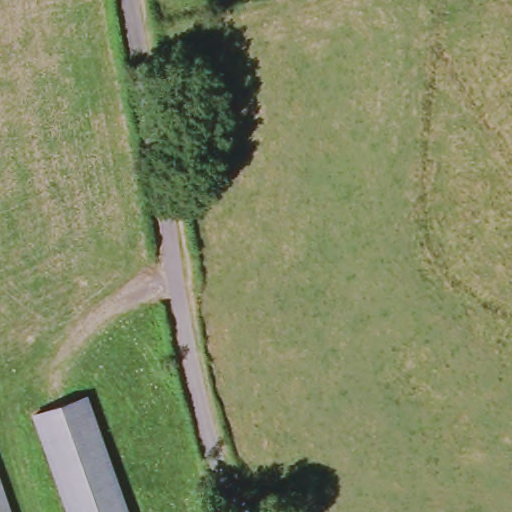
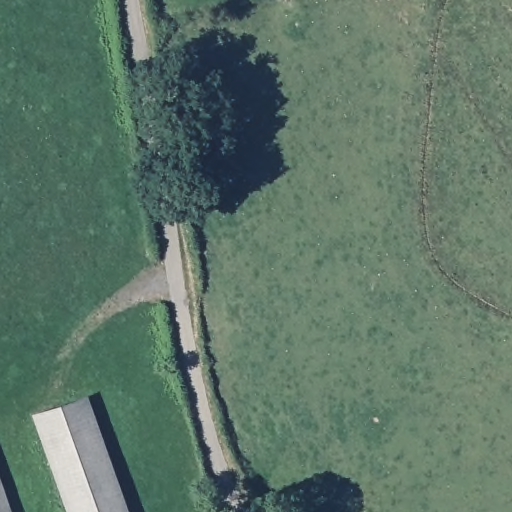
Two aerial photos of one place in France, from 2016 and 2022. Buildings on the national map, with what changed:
unchanged [(27,420),(79,401),(122,512),(61,512),(27,420)]
unchanged [(7,512),(0,512),(0,493),(7,512)]

